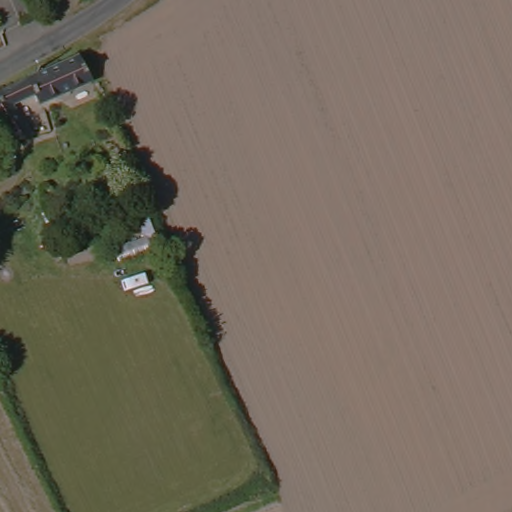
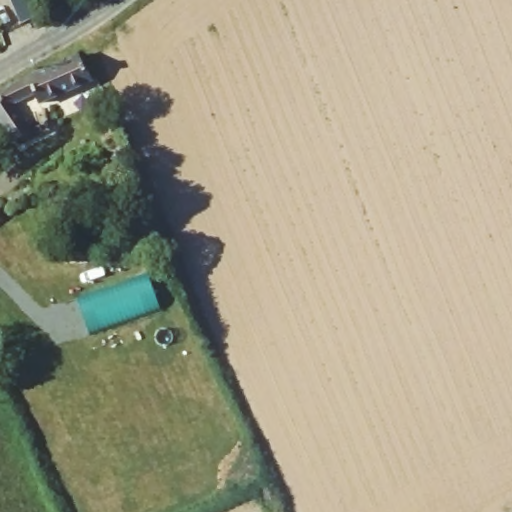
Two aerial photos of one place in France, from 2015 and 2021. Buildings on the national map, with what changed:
unchanged [(28,6),(37,2),(35,0),(52,0),(63,22),(41,34),(28,6)]
unchanged [(0,105),(0,101),(11,95),(9,90),(88,51),(98,76),(69,90),(49,101),(43,93),(22,103),(33,137),(18,144),(0,105)]
unchanged [(149,237),(148,234),(143,224),(154,219),(161,231),(149,237)]
new [(153,250),(124,260),(117,241),(146,231),(148,234),(149,237),(153,250)]
new [(79,300),(149,275),(159,306),(89,329),(79,300)]

